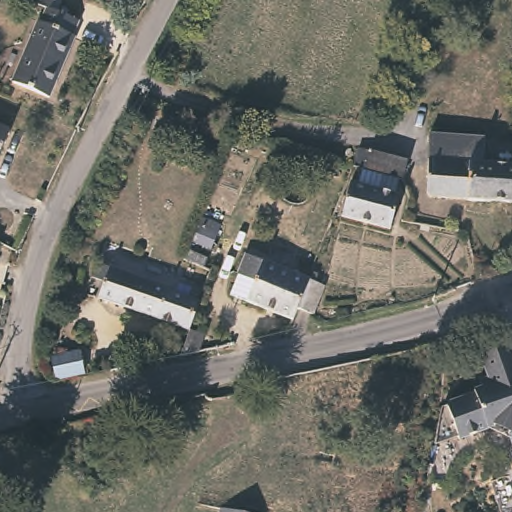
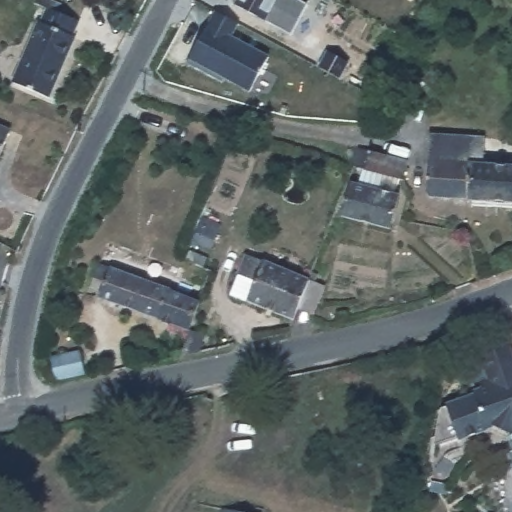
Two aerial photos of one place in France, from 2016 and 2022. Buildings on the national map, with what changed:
new [(267,19),(231,0),(297,0),(305,4),(290,31),(267,19)]
unchanged [(75,19),(69,34),(71,35),(46,98),(10,82),(35,19),(39,21),(45,6),(75,19)]
new [(249,91),(186,59),(214,9),(236,21),(229,35),(267,56),(249,91)]
unchanged [(7,129),(0,147),(0,126),(7,129)]
unchanged [(427,187),(430,129),(485,132),(485,153),(490,153),(490,149),(512,150),(512,199),(431,194),(427,187)]
unchanged [(408,160),(404,180),(399,179),(395,194),(400,196),(391,229),(342,217),(351,184),(360,185),(363,170),(353,168),(354,164),(360,148),(408,160)]
unchanged [(315,274),(311,283),(320,287),(308,314),(293,309),(289,320),(226,294),(242,255),(305,280),(308,272),(315,274)]
unchanged [(197,354),(180,358),(190,333),(99,298),(104,283),(91,278),(96,263),(199,301),(201,303),(191,330),(205,335),(197,354)]
unchanged [(496,424),(460,436),(458,431),(435,438),(443,404),(450,402),(449,399),(478,391),(478,389),(492,384),(495,376),(489,352),(512,346),(512,440),(510,432),(496,424)]
unchanged [(83,373),(57,378),(52,359),(79,353),(83,373)]
unchanged [(252,399),(242,402),(240,389),(249,387),(252,399)]
unchanged [(219,508),(242,512),(218,512),(219,508)]

